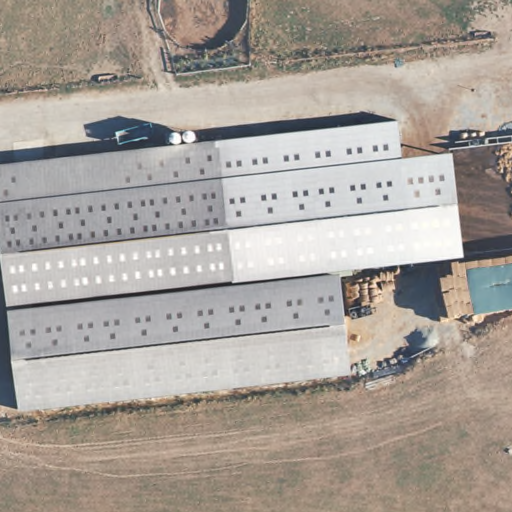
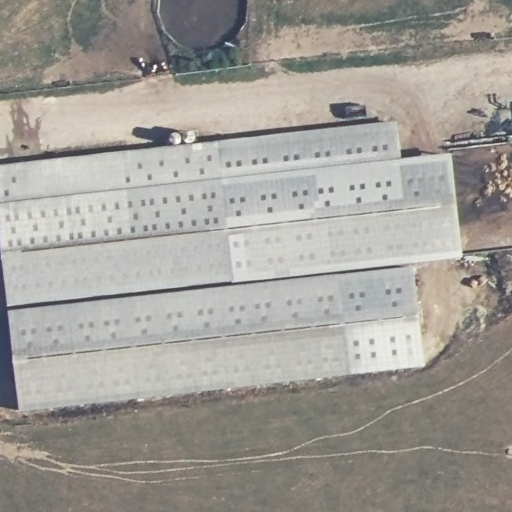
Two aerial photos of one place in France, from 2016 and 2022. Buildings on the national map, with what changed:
unchanged [(398,127),(402,160),(452,154),(466,260),(340,276),(8,312),(5,303),(230,281),(216,147),(398,127)]
unchanged [(216,147),(230,281),(5,303),(0,256),(0,167),(216,147)]
new [(425,369),(352,377),(340,276),(413,266),(425,369)]
unchanged [(340,276),(352,377),(19,415),(8,312),(340,276)]

